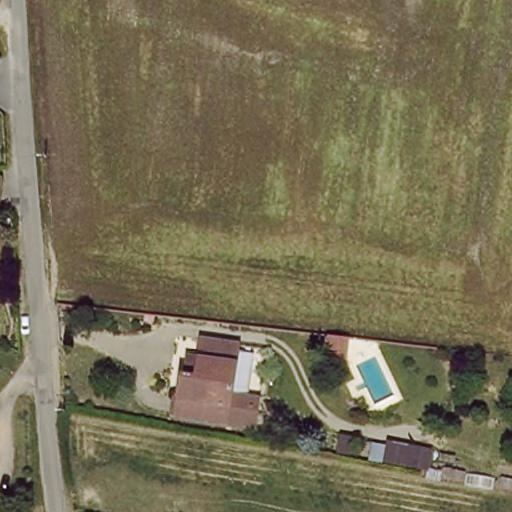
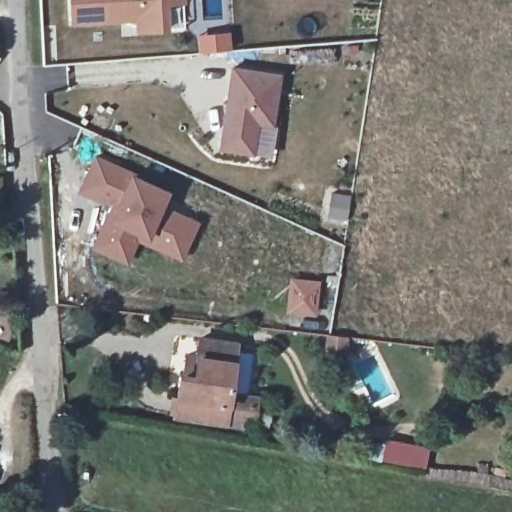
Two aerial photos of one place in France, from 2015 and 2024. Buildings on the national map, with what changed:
new [(74,0),(186,0),(186,2),(169,3),(170,29),(141,31),(140,19),(75,23),(74,0)]
new [(276,125),(261,123),(256,154),(225,149),(237,69),(283,76),(276,125)]
new [(181,256),(137,237),(127,260),(95,247),(108,215),(113,204),(81,190),(95,158),(132,175),(131,177),(165,191),(159,206),(191,221),(196,223),(181,256)]
unchanged [(242,338),(236,398),(260,401),(258,424),(178,413),(179,376),(197,378),(199,335),(242,338)]
new [(345,363),(328,360),(331,337),(348,339),(345,363)]

